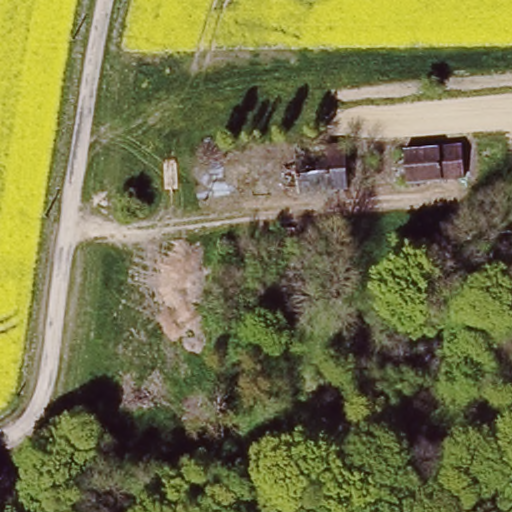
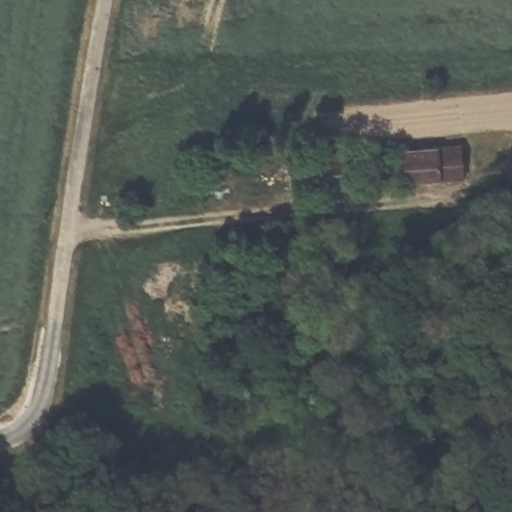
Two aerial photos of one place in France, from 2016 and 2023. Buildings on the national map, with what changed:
unchanged [(405,147),(462,142),(465,174),(408,179),(405,147)]
unchanged [(349,144),(353,189),(303,192),(301,162),(330,160),(329,146),(349,144)]

